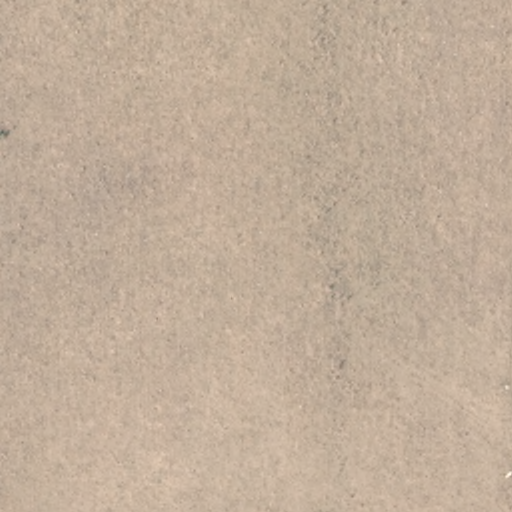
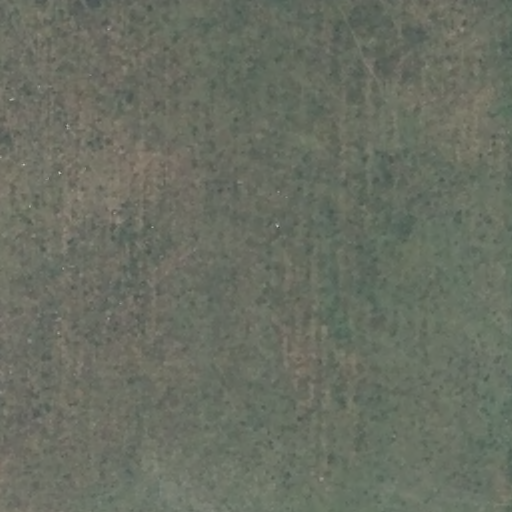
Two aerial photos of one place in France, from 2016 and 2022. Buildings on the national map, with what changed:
[]

